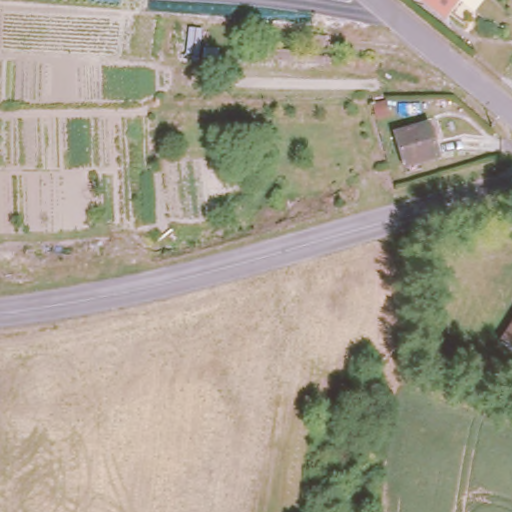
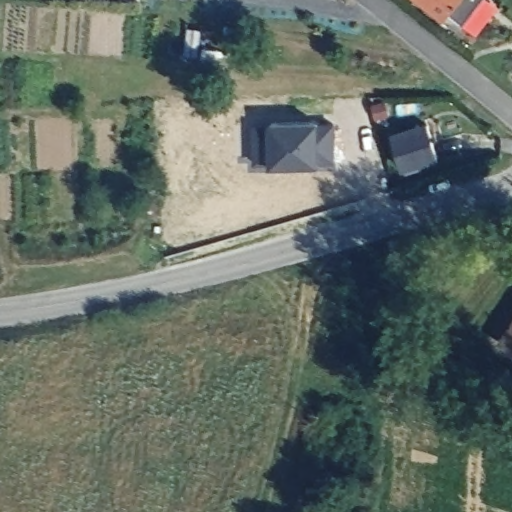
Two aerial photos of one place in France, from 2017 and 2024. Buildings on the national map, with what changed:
unchanged [(427,0),(452,0),(443,13),(427,0)]
new [(322,160),(322,164),(272,164),(272,161),(254,163),(255,121),(270,121),(270,120),(321,118),(321,121),(336,122),(337,161),(322,160)]
unchanged [(425,124),(435,158),(400,168),(388,134),(425,124)]
unchanged [(512,350),(493,338),(512,318),(512,350)]

